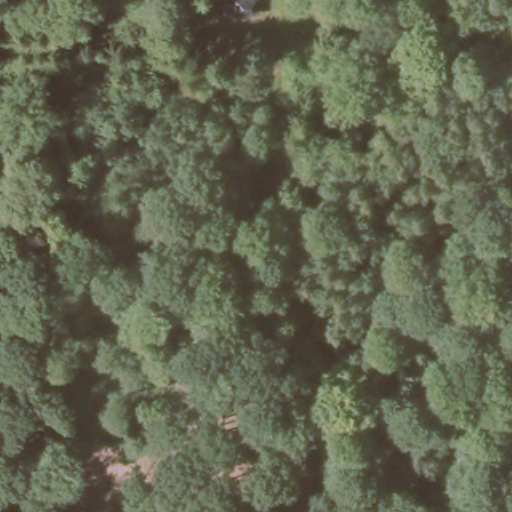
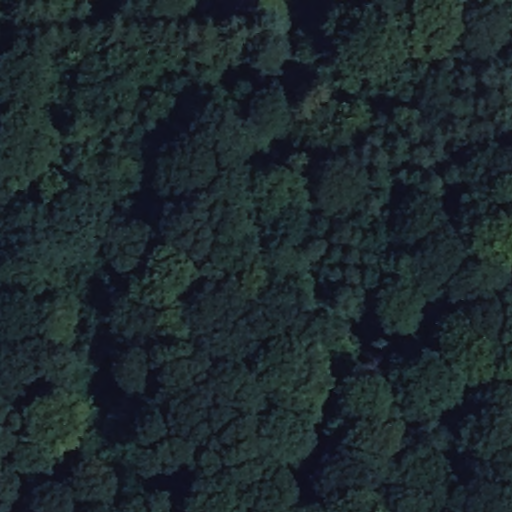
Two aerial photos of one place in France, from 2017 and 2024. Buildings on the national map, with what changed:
unchanged [(226,0),(228,14),(199,15),(198,0),(226,0)]

